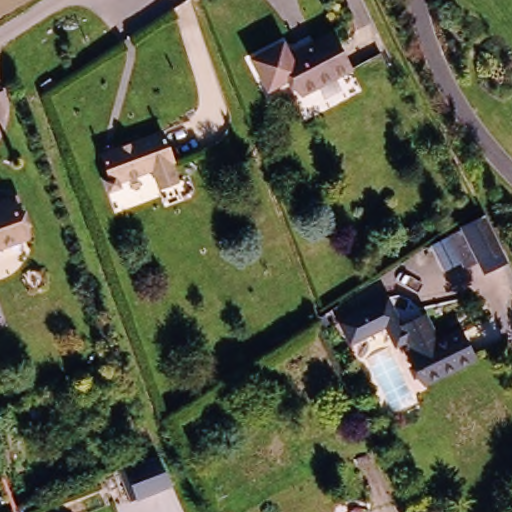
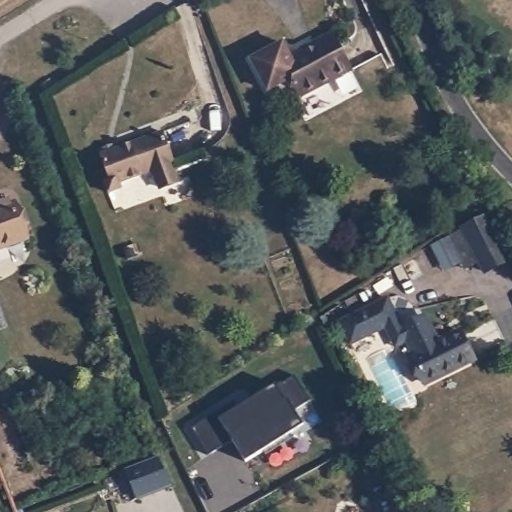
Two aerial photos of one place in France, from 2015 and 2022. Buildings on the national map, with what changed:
unchanged [(325,39),(342,74),(290,99),(283,84),(258,96),(242,65),(273,49),(280,62),(325,39)]
unchanged [(156,137),(165,167),(161,169),(167,183),(147,190),(143,175),(114,184),(116,191),(102,195),(98,182),(104,180),(97,156),(156,137)]
unchanged [(21,239),(0,247),(0,203),(5,202),(21,239)]
unchanged [(490,212),(505,243),(480,257),(468,263),(454,235),(465,228),(490,212)]
unchanged [(400,327),(406,343),(394,350),(384,329),(349,347),(336,322),(389,297),(403,325),(400,327)]
unchanged [(439,338),(461,329),(477,364),(422,387),(418,379),(413,380),(407,369),(411,364),(406,354),(410,353),(406,343),(400,327),(403,325),(427,315),(439,338)]
new [(310,401),(292,408),(303,427),(247,461),(233,438),(208,455),(191,428),(235,401),(240,409),(276,386),(295,375),(310,401)]
new [(165,462),(176,492),(140,505),(129,475),(165,462)]
demolished [(136,469),(147,499),(112,512),(100,482),(136,469)]
unchanged [(112,512),(106,512),(95,484),(100,482),(112,512)]

